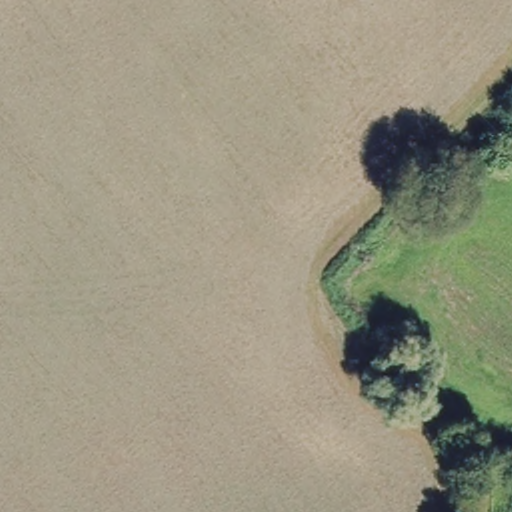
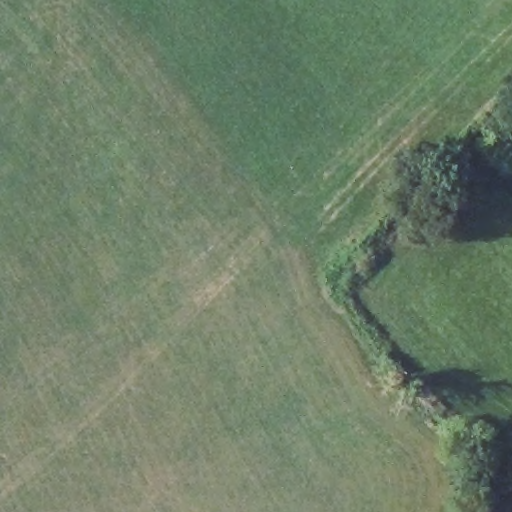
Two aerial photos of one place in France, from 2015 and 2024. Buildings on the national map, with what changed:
[]

